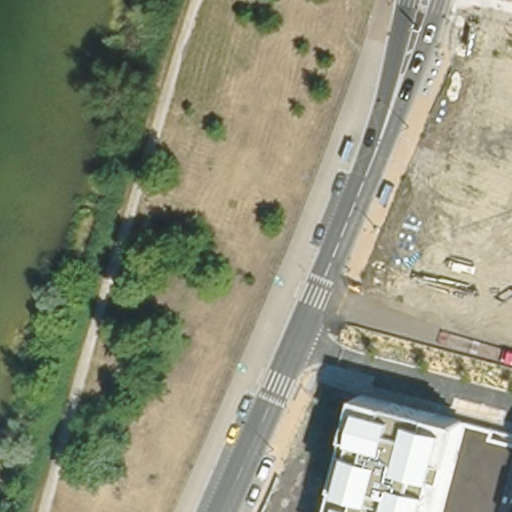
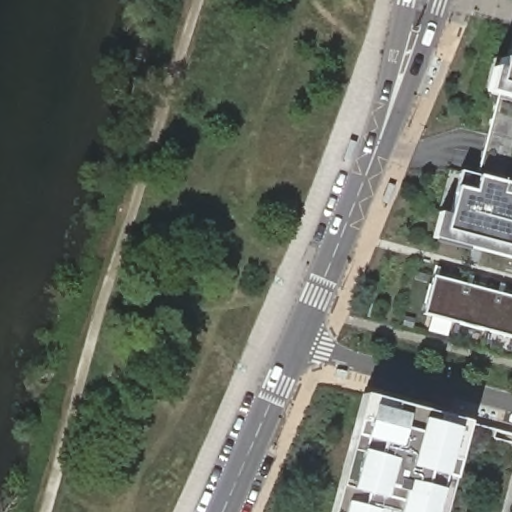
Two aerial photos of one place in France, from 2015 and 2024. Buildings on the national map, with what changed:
new [(512,89),(501,86),(492,83),(500,58),(507,61),(512,44),(512,89)]
new [(501,86),(512,89),(512,184),(477,174),(501,86)]
new [(440,210),(451,213),(462,170),(477,174),(512,184),(512,261),(432,239),(440,210)]
new [(435,276),(512,296),(512,336),(425,313),(435,276)]
unchanged [(467,421),(443,512),(332,512),(362,394),(467,421)]
unchanged [(512,433),(512,512),(443,512),(467,421),(512,433)]

